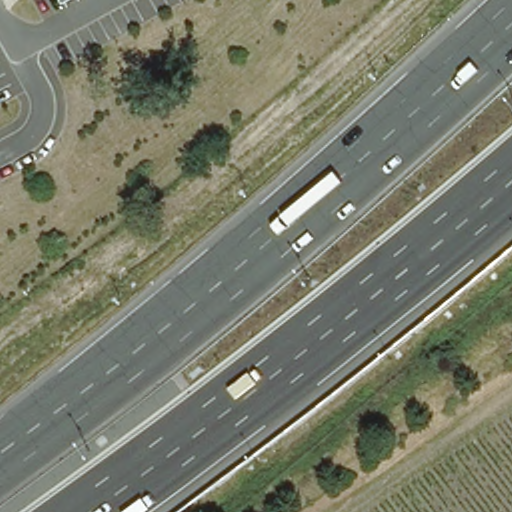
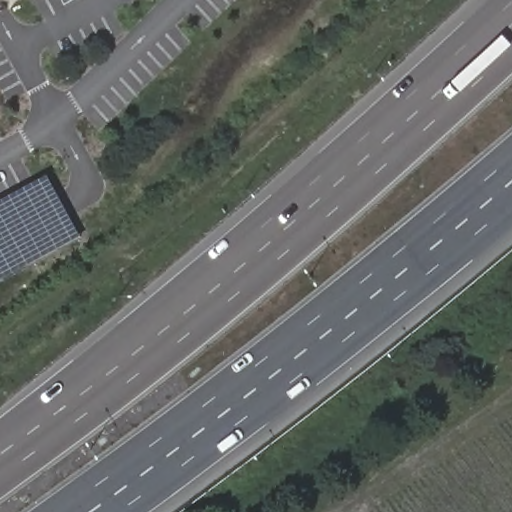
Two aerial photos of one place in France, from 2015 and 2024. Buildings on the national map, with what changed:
unchanged [(63,0),(77,0),(66,6),(63,0)]
new [(0,282),(0,199),(45,174),(80,238),(0,282)]

